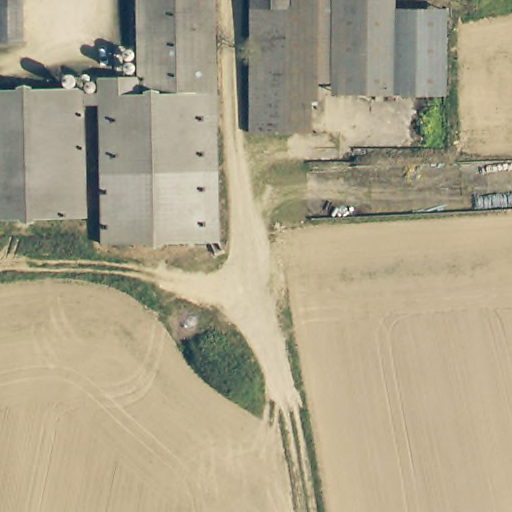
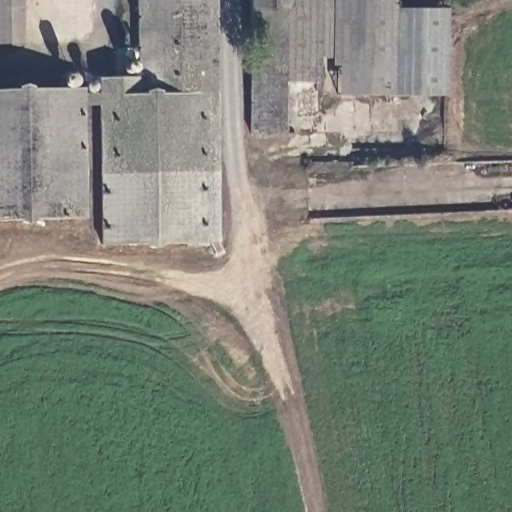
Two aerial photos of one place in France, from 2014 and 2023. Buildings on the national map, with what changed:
unchanged [(24,43),(0,43),(0,0),(22,0),(24,43)]
unchanged [(220,235),(105,241),(98,101),(83,101),(87,216),(0,220),(0,89),(80,87),(80,92),(97,91),(97,74),(136,74),(133,0),(210,0),(220,235)]
unchanged [(320,140),(257,144),(248,0),(311,0),(320,140)]
unchanged [(390,9),(396,94),(337,97),(333,0),(390,0),(390,9)]
unchanged [(441,8),(446,91),(396,94),(390,9),(441,8)]

